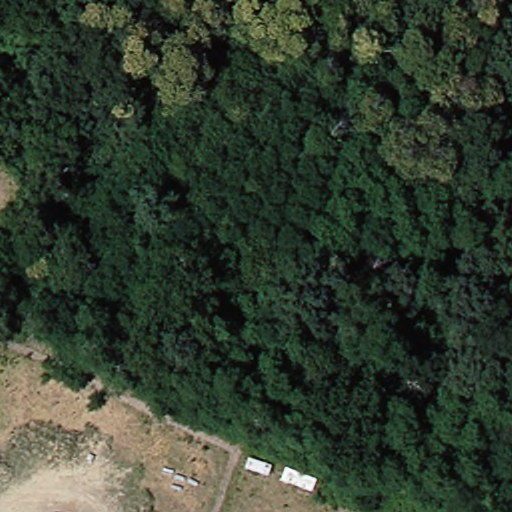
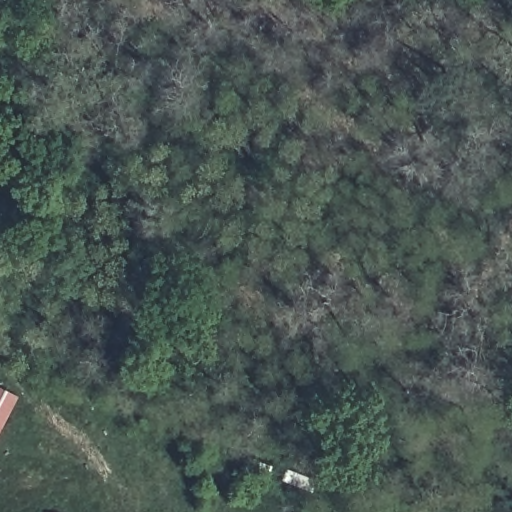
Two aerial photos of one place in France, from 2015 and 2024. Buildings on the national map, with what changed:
new [(0,429),(0,390),(15,395),(0,429)]

